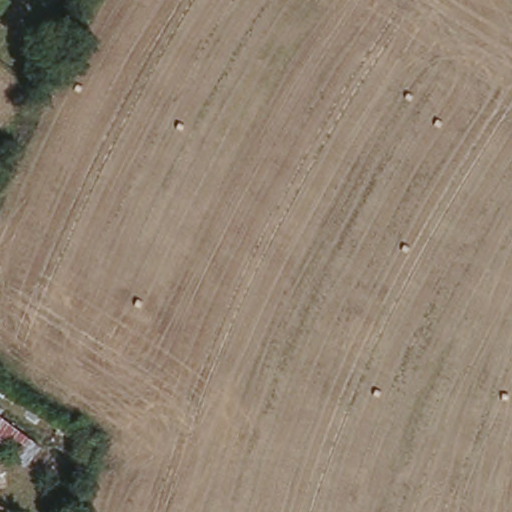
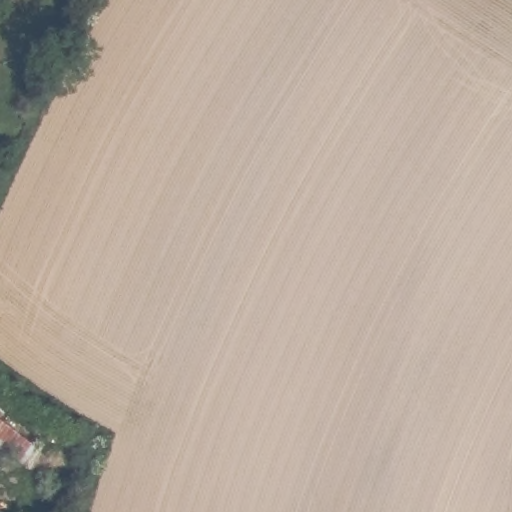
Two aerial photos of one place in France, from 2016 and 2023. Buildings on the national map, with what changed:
unchanged [(39,446),(21,469),(0,451),(0,413),(39,446)]

